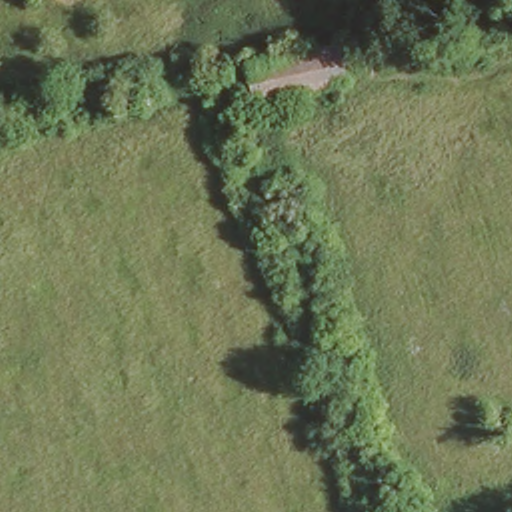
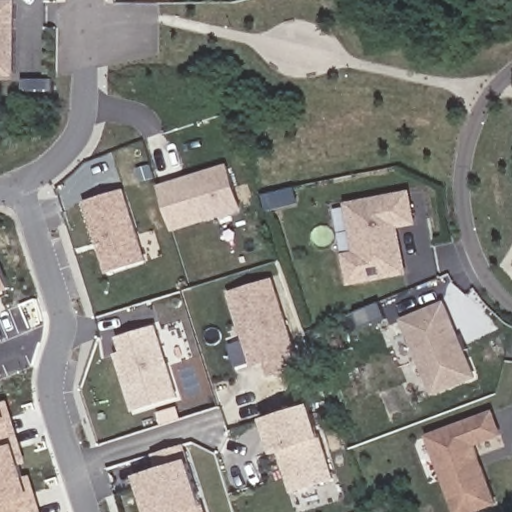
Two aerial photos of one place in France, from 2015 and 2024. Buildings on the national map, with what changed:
new [(0,0),(18,0),(16,77),(0,76),(0,0)]
demolished [(353,86),(249,100),(246,55),(343,27),(353,86)]
new [(225,162),(241,210),(170,231),(156,184),(225,162)]
new [(122,189),(145,261),(105,273),(82,199),(122,189)]
new [(351,286),(345,254),(355,251),(345,202),(411,190),(417,225),(401,227),(410,275),(351,286)]
new [(0,295),(0,259),(14,289),(0,295)]
new [(271,277),(293,348),(297,347),(301,364),(267,377),(264,364),(249,367),(225,291),(271,277)]
new [(435,396),(401,318),(446,300),(480,377),(435,396)]
new [(107,337),(156,325),(179,398),(130,412),(107,337)]
new [(9,400),(28,462),(21,462),(25,475),(31,474),(42,512),(0,512),(0,395),(1,400),(9,400)]
new [(307,400),(316,436),(318,435),(332,479),(286,492),(275,451),(269,453),(257,415),(307,400)]
new [(476,446),(498,504),(478,512),(456,512),(427,434),(493,410),(503,435),(476,446)]
new [(182,442),(203,512),(143,512),(130,470),(154,463),(149,453),(182,442)]

